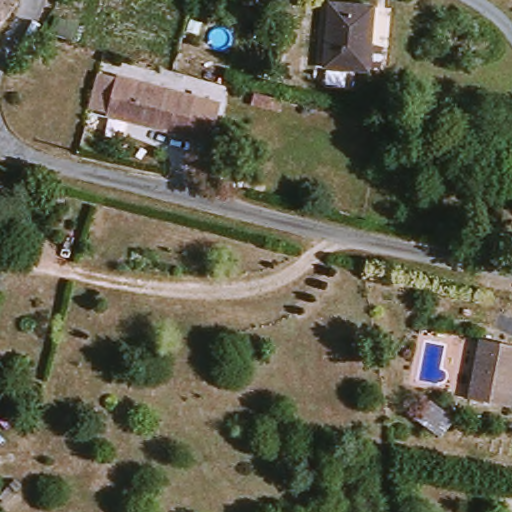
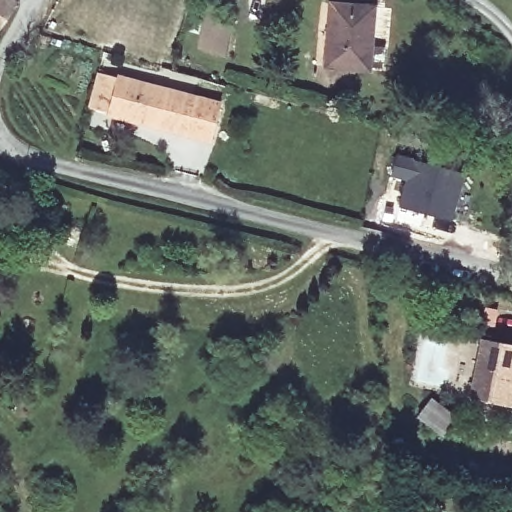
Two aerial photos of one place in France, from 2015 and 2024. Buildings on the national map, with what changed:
unchanged [(20,10),(0,38),(0,0),(8,0),(20,10)]
unchanged [(387,4),(383,66),(342,64),(345,1),(387,4)]
unchanged [(194,137),(110,112),(112,108),(96,103),(108,71),(125,76),(125,73),(230,104),(220,135),(217,144),(194,137)]
new [(395,152),(465,172),(451,220),(396,205),(402,179),(388,175),(395,152)]
unchanged [(469,401),(481,342),(512,349),(512,393),(508,409),(469,401)]

